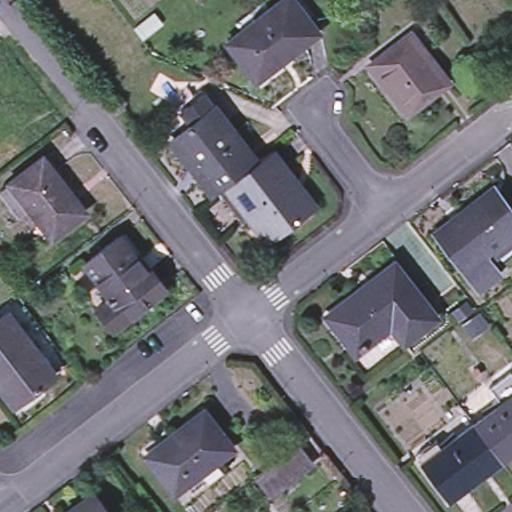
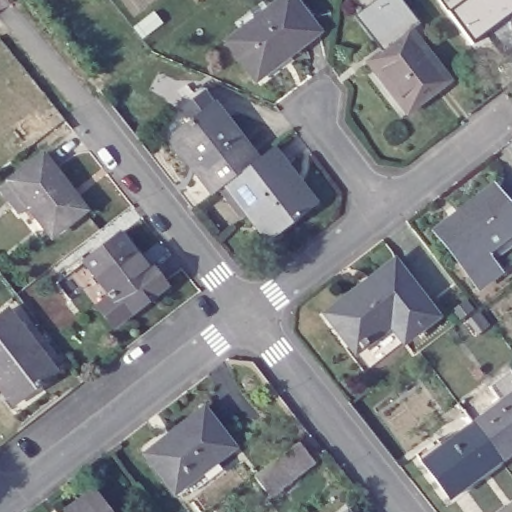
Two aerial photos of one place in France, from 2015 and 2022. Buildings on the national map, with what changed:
unchanged [(317,32),(253,80),(224,42),(278,0),(292,0),(317,32)]
new [(385,56),(355,16),(377,0),(398,0),(420,31),(412,36),(385,56)]
new [(475,41),(445,0),(512,0),(512,14),(475,41)]
unchanged [(451,87),(410,118),(371,67),(412,36),(451,87)]
unchanged [(218,189),(207,198),(163,141),(205,109),(249,166),(218,189)]
unchanged [(0,188),(6,183),(40,156),(83,211),(49,237),(26,208),(17,215),(0,194),(0,188)]
unchanged [(286,196),(292,192),(305,209),(260,244),(218,189),(249,166),(257,159),(286,196)]
unchanged [(434,231),(450,218),(455,223),(496,190),(512,210),(512,233),(485,254),(499,272),(478,288),(434,231)]
unchanged [(115,328),(99,306),(112,297),(86,262),(124,234),(150,268),(154,265),(170,287),(115,328)]
unchanged [(402,342),(388,325),(352,352),(324,315),(392,263),(435,317),(402,342)]
unchanged [(52,372),(15,401),(0,381),(0,314),(5,310),(52,372)]
unchanged [(504,464),(477,428),(502,409),(490,392),(512,375),(512,458),(504,464)]
unchanged [(184,486),(172,495),(142,455),(169,435),(171,438),(204,413),(232,449),(214,463),(220,470),(190,493),(184,486)]
unchanged [(452,502),(426,466),(427,465),(420,457),(434,447),(440,455),(477,428),(504,464),(452,502)]
unchanged [(269,497),(254,479),(297,446),(311,464),(269,497)]
unchanged [(109,512),(65,512),(94,492),(109,512)]
unchanged [(341,512),(344,510),(346,512),(341,512)]

